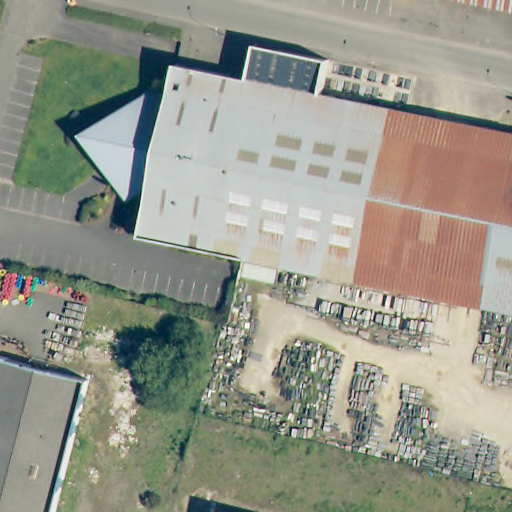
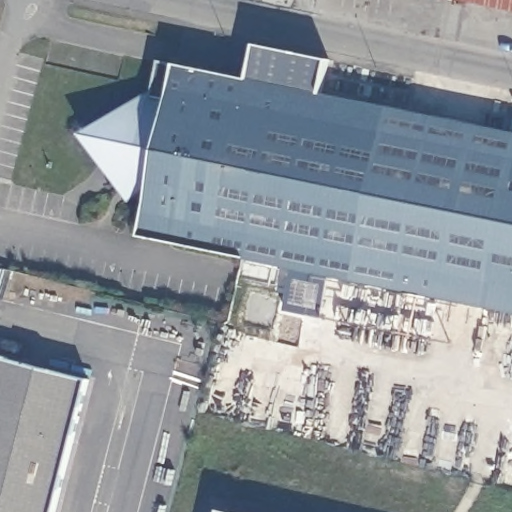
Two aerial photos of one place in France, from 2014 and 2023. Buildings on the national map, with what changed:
unchanged [(512,9),(470,0),(512,0),(512,9)]
unchanged [(357,280),(142,236),(154,181),(117,173),(91,136),(149,97),(169,101),(177,63),(249,78),(250,78),(257,43),(330,59),(321,106),(339,110),(341,97),(393,107),(357,280)]
unchanged [(512,172),(485,306),(357,280),(393,107),(512,132),(512,172)]
unchanged [(512,172),(512,312),(485,306),(512,172)]
unchanged [(10,358),(90,380),(56,512),(0,512),(0,355),(10,357),(10,358)]
unchanged [(242,512),(222,512),(224,507),(242,512)]

